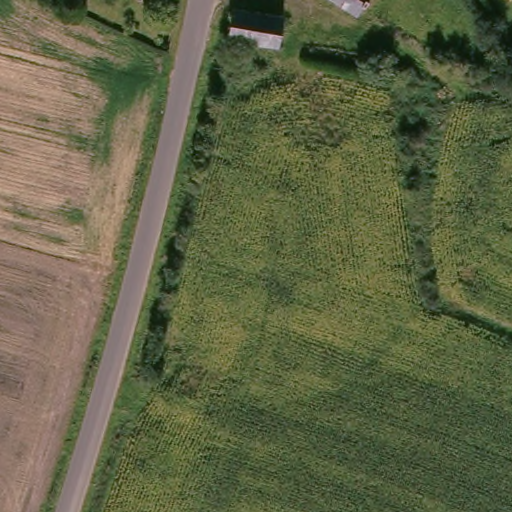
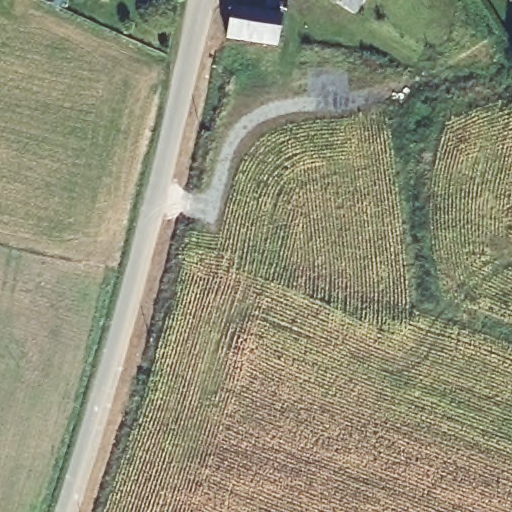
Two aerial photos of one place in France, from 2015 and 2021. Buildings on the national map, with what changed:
unchanged [(356,11),(338,0),(363,0),(356,11)]
unchanged [(285,9),(279,37),(230,31),(235,3),(285,9)]

